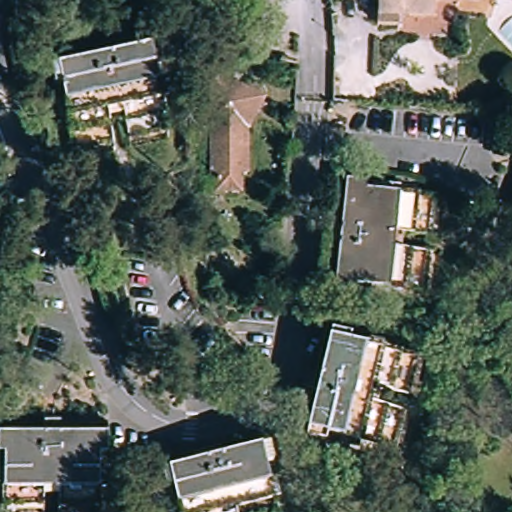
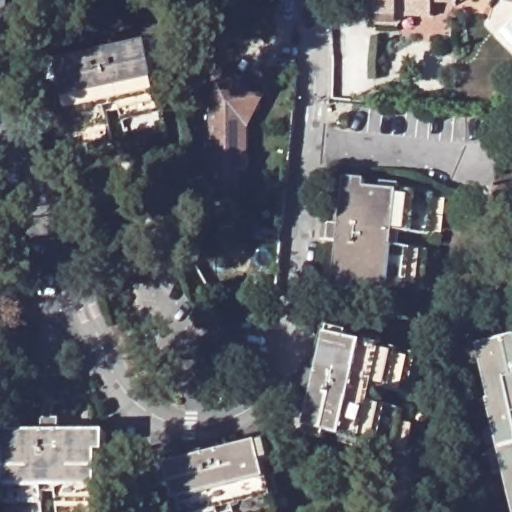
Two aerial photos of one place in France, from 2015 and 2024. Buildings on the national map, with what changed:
unchanged [(377,11),(378,0),(434,0),(433,14),(377,11)]
unchanged [(75,137),(62,76),(55,77),(50,59),(94,50),(92,38),(107,35),(110,47),(158,37),(162,57),(154,59),(167,120),(168,127),(130,135),(126,118),(122,100),(107,103),(111,121),(114,138),(76,145),(75,137)]
unchanged [(263,92),(246,123),(246,165),(240,165),(240,185),(217,185),(217,178),(211,177),(211,65),(263,92)]
unchanged [(416,283),(354,277),(353,285),(334,282),(339,236),(327,235),(329,217),(341,219),(346,174),(365,175),(365,183),(426,190),(435,190),(430,230),(413,228),(395,226),(393,241),(411,244),(428,245),(424,284),(416,283)]
unchanged [(392,440),(331,426),(329,434),(310,430),(321,384),(309,381),(313,365),(325,368),(336,322),(355,327),(353,335),(414,348),(422,350),(413,388),(396,385),(378,381),(374,395),(392,400),(409,404),(400,442),(392,440)]
new [(491,400),(477,345),(512,336),(512,500),(488,402),(491,400)]
unchanged [(219,367),(223,386),(203,390),(200,371),(219,367)]
unchanged [(59,500),(59,481),(44,480),(43,499),(43,512),(4,512),(4,508),(5,445),(0,445),(0,426),(44,426),(44,414),(60,415),(60,426),(107,427),(107,447),(99,447),(98,509),(98,512),(59,512),(59,500)]
unchanged [(173,480),(165,481),(161,462),(206,451),(205,446),(204,440),(219,436),(221,443),(222,448),(268,437),(272,456),(265,458),(278,512),(237,512),(234,501),(220,505),(222,512),(181,512),(173,480)]

